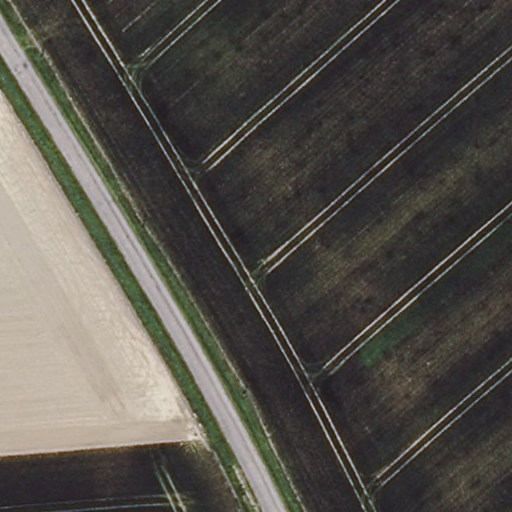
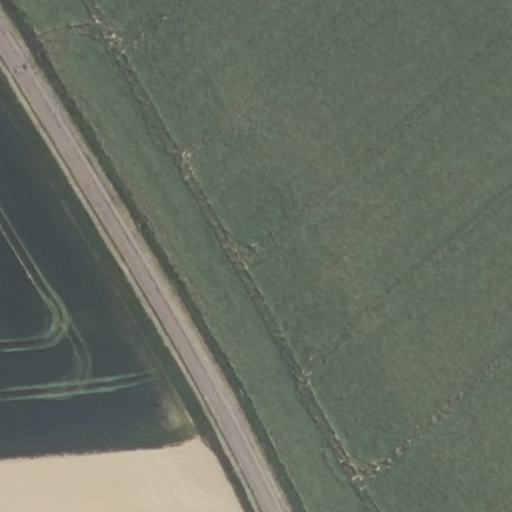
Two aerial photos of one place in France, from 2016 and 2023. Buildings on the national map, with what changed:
[]

